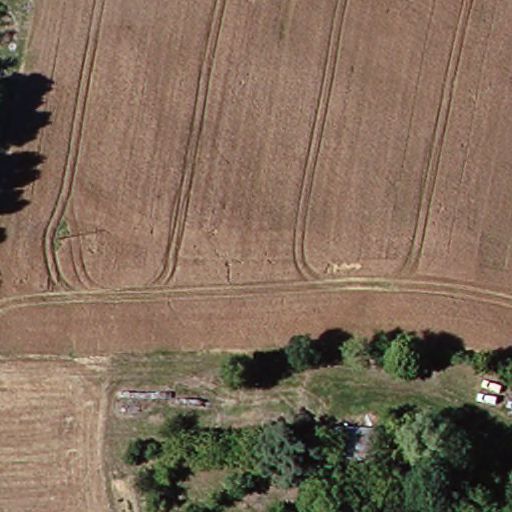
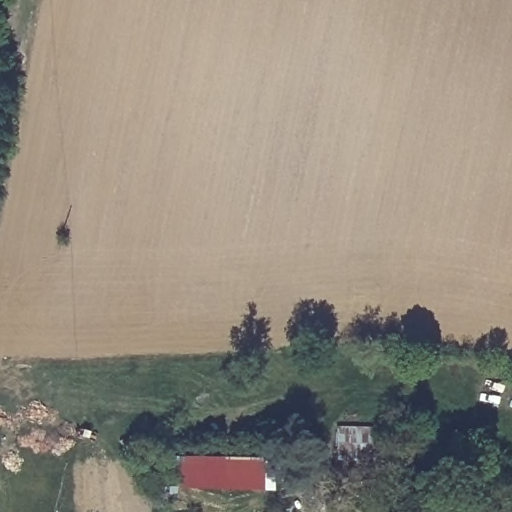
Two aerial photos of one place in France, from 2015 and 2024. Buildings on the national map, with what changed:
unchanged [(372,428),(371,464),(332,464),(331,427),(372,428)]
new [(271,492),(173,488),(175,455),(272,459),(271,492)]

